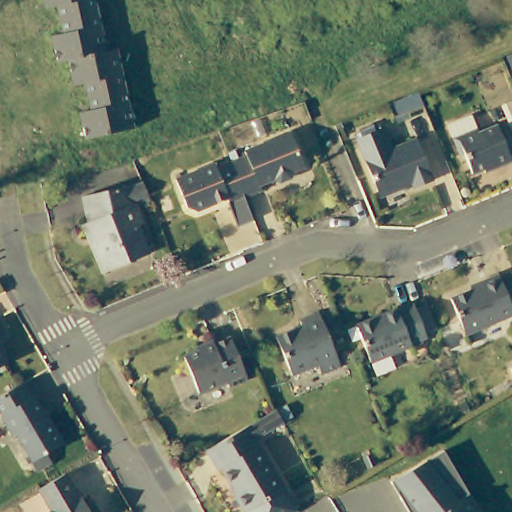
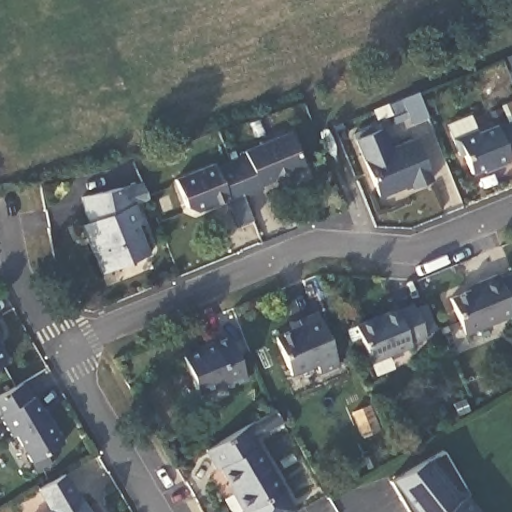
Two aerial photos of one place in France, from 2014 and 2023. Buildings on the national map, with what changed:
demolished [(91,7),(99,50),(110,48),(117,86),(125,127),(79,136),(74,110),(85,108),(82,92),(80,80),(68,83),(63,56),(52,58),(48,33),(60,31),(56,13),(54,2),(41,5),(40,0),(90,0),(91,7)]
unchanged [(511,153),(512,156),(512,163),(488,174),(486,170),(473,176),(448,119),(470,110),(479,131),(512,116),(512,152),(511,153)]
unchanged [(421,181),(405,188),(402,183),(375,195),(352,139),(370,131),(378,150),(403,140),(421,181)]
unchanged [(248,153),(246,147),(276,134),(292,172),(258,187),(262,197),(251,202),(234,159),(248,153)]
unchanged [(238,208),(233,197),(195,213),(177,174),(213,158),(217,167),(234,159),(251,202),(238,208)]
unchanged [(132,200),(147,248),(99,267),(84,231),(81,201),(139,180),(141,179),(145,196),(132,200)]
unchanged [(465,333),(449,296),(472,287),(470,282),(492,272),(495,279),(512,271),(512,310),(512,313),(465,333)]
unchanged [(312,351),(286,363),(272,332),(298,320),(297,315),(316,307),(336,354),(318,363),(312,351)]
unchanged [(403,345),(405,348),(371,364),(353,327),(389,310),(393,318),(409,310),(411,313),(426,307),(434,328),(420,334),(422,336),(403,345)]
unchanged [(0,336),(0,335),(1,336),(0,336)]
unchanged [(227,381),(200,391),(185,355),(228,339),(244,379),(229,385),(227,381)]
unchanged [(0,342),(8,357),(0,361),(0,342)]
unchanged [(31,395),(39,409),(45,410),(61,438),(42,449),(47,457),(34,465),(13,428),(11,430),(0,412),(0,408),(1,408),(0,407),(0,393),(7,389),(20,381),(29,397),(31,395)]
unchanged [(283,415),(250,435),(280,486),(247,506),(224,467),(219,470),(203,444),(276,403),(283,415)]
unchanged [(478,512),(413,512),(393,480),(446,450),(472,493),(466,497),(478,512)]
unchanged [(81,494),(92,512),(50,512),(39,493),(65,477),(77,496),(81,494)]

